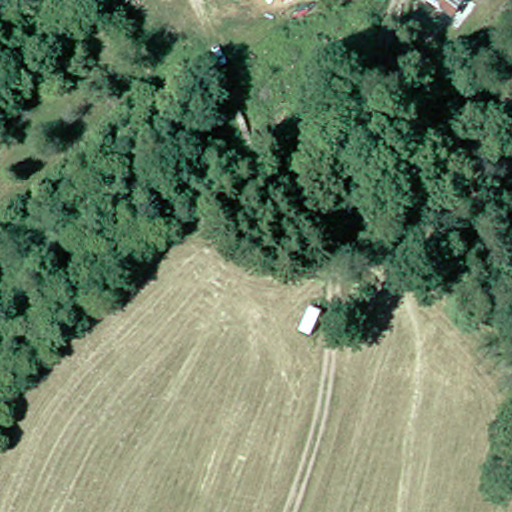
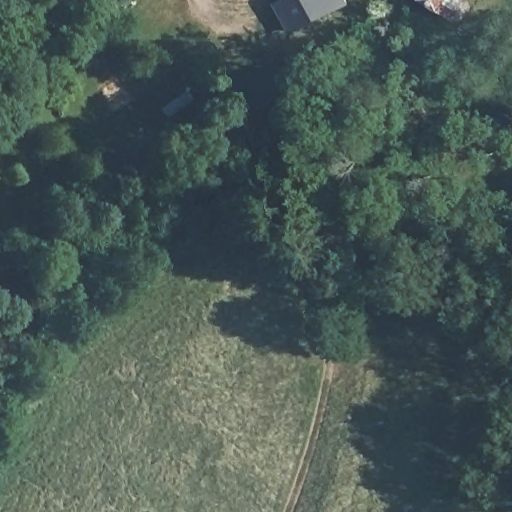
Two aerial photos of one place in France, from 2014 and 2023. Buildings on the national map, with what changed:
new [(291,34),(275,2),(280,0),(339,0),(343,7),(291,34)]
unchanged [(430,0),(469,0),(459,18),(430,0)]

